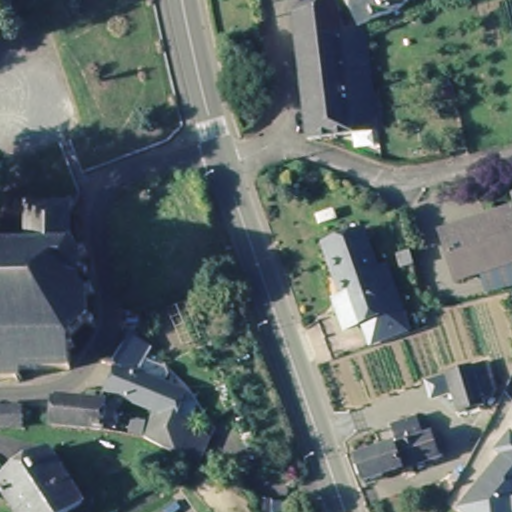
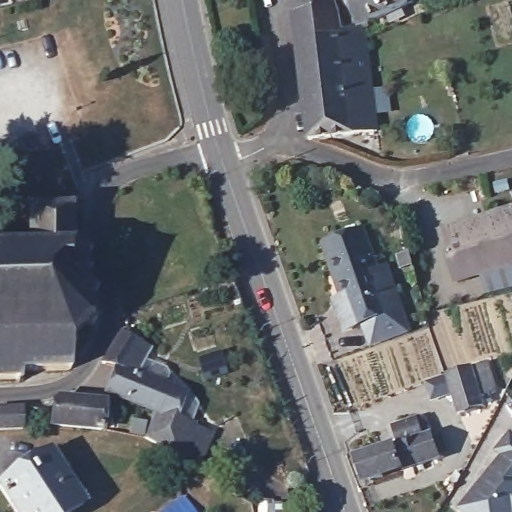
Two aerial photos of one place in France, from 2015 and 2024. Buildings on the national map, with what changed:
unchanged [(13,4),(0,7),(0,0),(12,0),(13,4)]
unchanged [(296,14),(315,0),(420,0),(361,28),(371,89),(303,96),(296,14)]
unchanged [(303,96),(371,89),(378,131),(307,138),(303,96)]
unchanged [(31,252),(32,241),(33,241),(34,218),(27,210),(30,206),(39,215),(70,214),(73,207),(79,210),(74,223),(75,238),(80,241),(75,250),(82,256),(92,252),(94,261),(85,264),(84,271),(97,277),(94,285),(81,280),(78,287),(91,296),(98,292),(101,300),(94,303),(92,323),(101,325),(99,333),(87,331),(76,343),(79,352),(75,355),(74,370),(73,371),(22,376),(27,385),(24,387),(20,383),(0,383),(0,252),(31,252)]
unchanged [(512,271),(460,288),(443,239),(512,216),(512,271)]
unchanged [(346,299),(326,246),(366,231),(381,271),(390,267),(398,290),(406,310),(367,325),(349,331),(341,311),(338,301),(346,299)]
unchanged [(406,310),(415,334),(376,348),(367,325),(406,310)]
unchanged [(174,442),(138,430),(147,409),(108,391),(116,369),(99,361),(121,332),(141,342),(135,352),(156,367),(159,373),(153,384),(178,394),(167,418),(180,424),(204,433),(197,451),(174,442)]
unchanged [(430,385),(452,378),(488,365),(500,395),(485,400),(487,408),(465,416),(458,396),(435,403),(430,385)]
unchanged [(52,414),(54,402),(59,398),(105,403),(100,431),(52,426),(52,414)]
unchanged [(20,407),(21,432),(0,432),(0,408),(20,407)]
unchanged [(400,445),(393,426),(417,418),(423,437),(432,434),(440,460),(365,485),(356,459),(400,445)]
unchanged [(511,438),(512,438),(512,512),(465,512),(505,461),(498,456),(511,438)]
unchanged [(84,502),(68,512),(17,512),(0,487),(0,484),(50,452),(84,502)]

